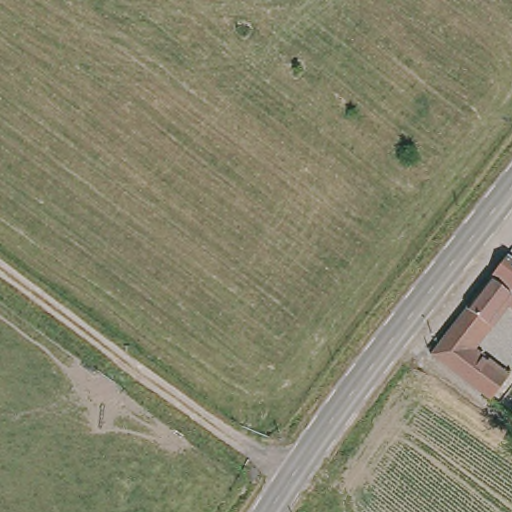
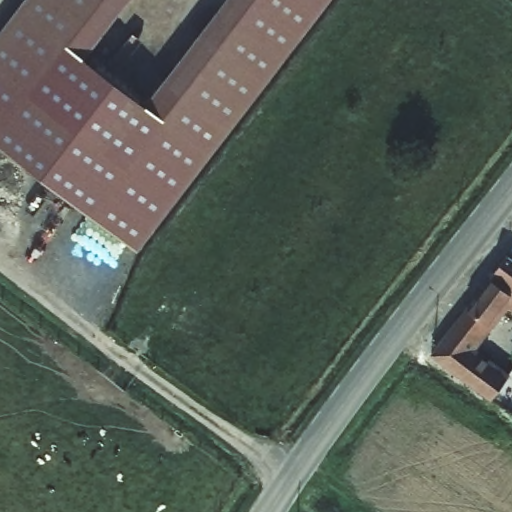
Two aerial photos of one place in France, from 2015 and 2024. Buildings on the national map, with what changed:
new [(24,0),(127,0),(52,101),(109,146),(222,0),(330,0),(137,251),(0,144),(0,32),(24,0)]
new [(142,103),(109,146),(52,101),(85,57),(142,103)]
unchanged [(433,349),(511,250),(512,250),(512,300),(507,296),(473,342),(510,372),(493,394),(433,349)]

